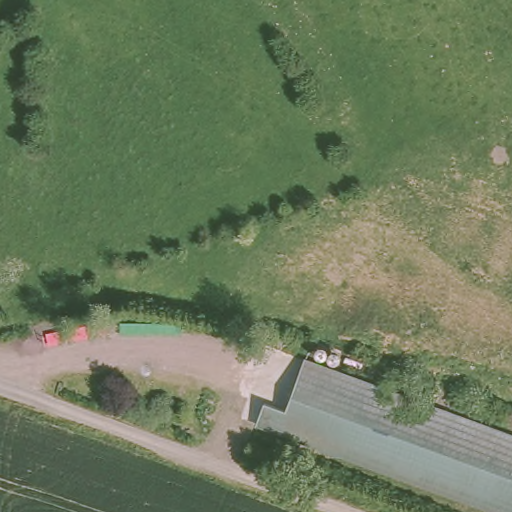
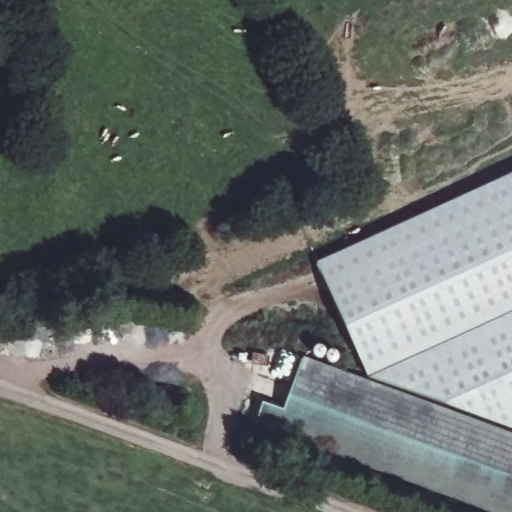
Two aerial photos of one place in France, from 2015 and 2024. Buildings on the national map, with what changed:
new [(316,263),(512,174),(512,429),(368,377),(316,263)]
unchanged [(293,412),(313,362),(512,439),(512,512),(492,512),(285,437),(286,435),(265,426),(273,405),(293,412)]

